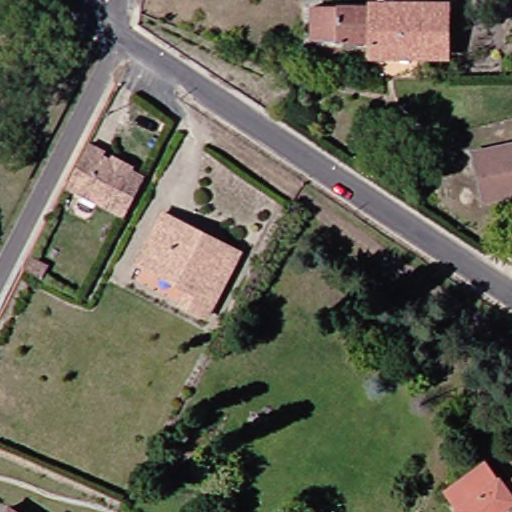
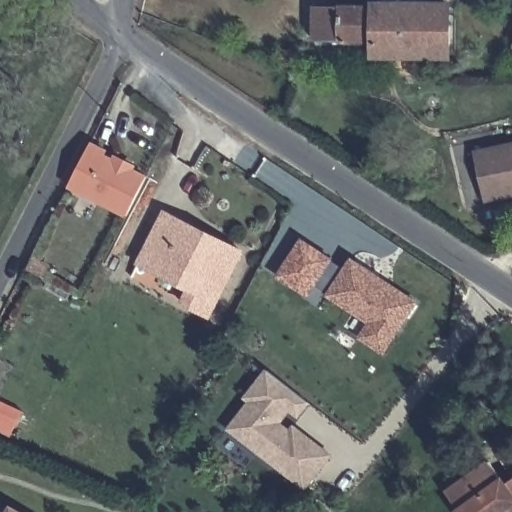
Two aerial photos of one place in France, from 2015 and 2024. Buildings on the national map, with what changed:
unchanged [(333,6),(368,5),(368,41),(308,40),(308,6),(333,6)]
unchanged [(368,41),(368,5),(444,6),(443,55),(385,54),(386,59),(368,59),(368,41)]
unchanged [(133,92),(126,100),(116,92),(121,83),(133,92)]
unchanged [(63,186),(85,143),(101,151),(98,155),(141,177),(121,216),(63,186)]
unchanged [(480,201),(472,161),(470,153),(502,145),(512,143),(512,194),(480,201)]
unchanged [(202,316),(178,303),(191,280),(139,253),(159,213),(175,221),(169,233),(205,251),(211,239),(235,252),(202,316)]
new [(277,274),(301,238),(330,258),(307,293),(277,274)]
unchanged [(26,270),(32,257),(64,273),(57,286),(26,270)]
new [(413,302),(390,337),(326,295),(349,259),(413,302)]
new [(380,352),(357,337),(367,323),(390,337),(380,352)]
new [(247,398),(257,384),(268,371),(308,402),(298,416),(289,409),(276,427),(287,435),(294,427),(330,455),(305,488),(230,429),(252,402),(261,409),(247,398)]
unchanged [(458,507),(445,490),(457,481),(483,462),(500,486),(509,479),(512,484),(512,512),(455,512),(454,510),(458,507)]
unchanged [(19,512),(7,512),(10,507),(19,512)]

